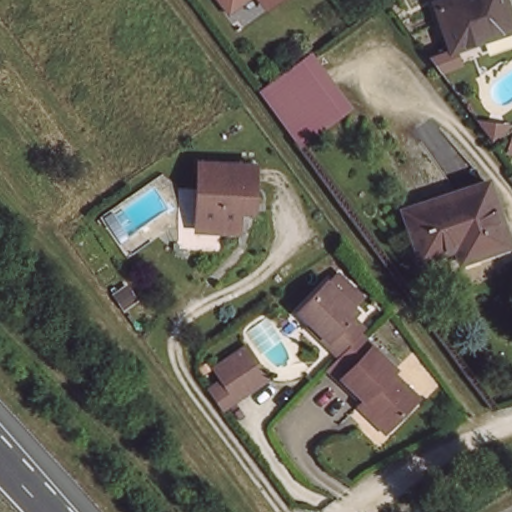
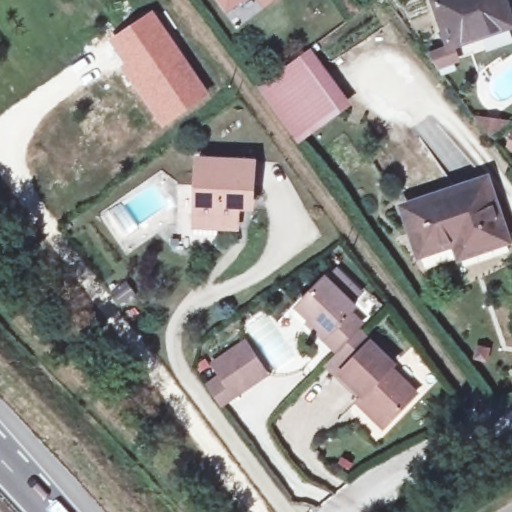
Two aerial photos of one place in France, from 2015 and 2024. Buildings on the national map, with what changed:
unchanged [(227,9),(221,0),(238,0),(227,9)]
unchanged [(263,2),(261,0),(266,0),(263,2)]
unchanged [(512,23),(512,25),(452,46),(436,0),(504,0),(512,23)]
new [(153,8),(211,94),(162,128),(119,65),(123,62),(108,38),(153,8)]
unchanged [(300,137),(263,87),(305,56),(342,106),(300,137)]
unchanged [(195,217),(198,159),(254,161),(253,200),(239,199),(238,227),(218,227),(195,226),(195,217)]
unchanged [(456,242),(420,254),(404,207),(454,190),(456,195),(489,184),(508,240),(478,250),(460,256),(456,242)]
unchanged [(348,362),(316,333),(319,328),(293,301),(335,265),(362,293),(352,308),(370,335),(348,362)]
unchanged [(348,362),(370,335),(396,367),(418,391),(379,437),(352,408),(366,400),(337,375),(348,362)]
unchanged [(218,357),(243,338),(266,368),(240,387),(223,399),(209,379),(225,367),(218,357)]
unchanged [(486,359),(476,356),(479,347),(489,350),(486,359)]

